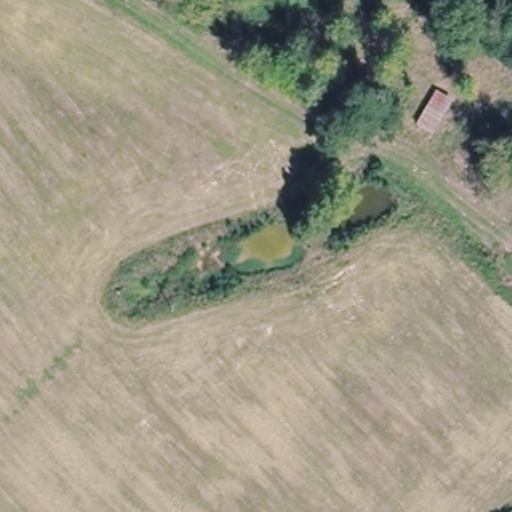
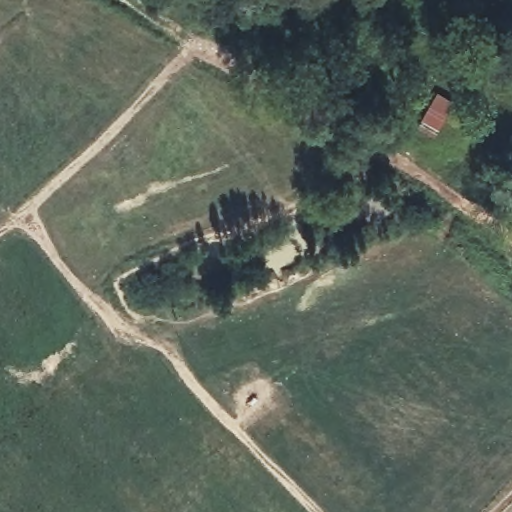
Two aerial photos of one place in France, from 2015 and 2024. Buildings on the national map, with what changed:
unchanged [(431,136),(411,123),(435,89),(451,100),(431,136)]

